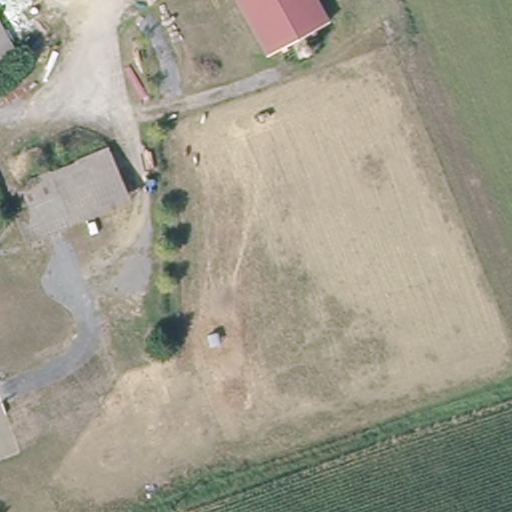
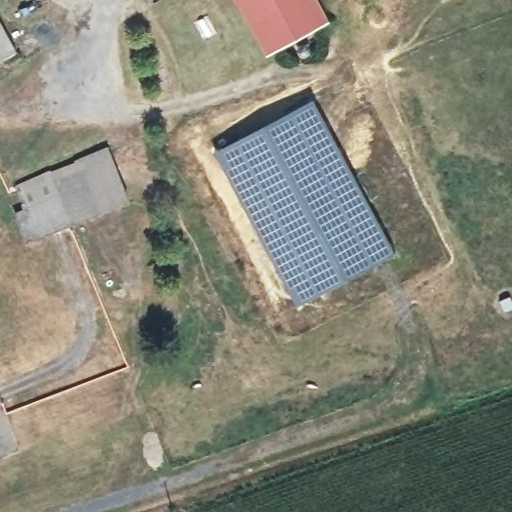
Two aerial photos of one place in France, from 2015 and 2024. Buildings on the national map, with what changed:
unchanged [(331,21),(271,52),(243,0),(320,0),(331,21)]
unchanged [(0,62),(0,12),(20,51),(0,62)]
new [(395,253),(298,306),(215,151),(313,100),(395,253)]
unchanged [(50,200),(37,171),(95,144),(120,199),(24,247),(11,217),(50,200)]

